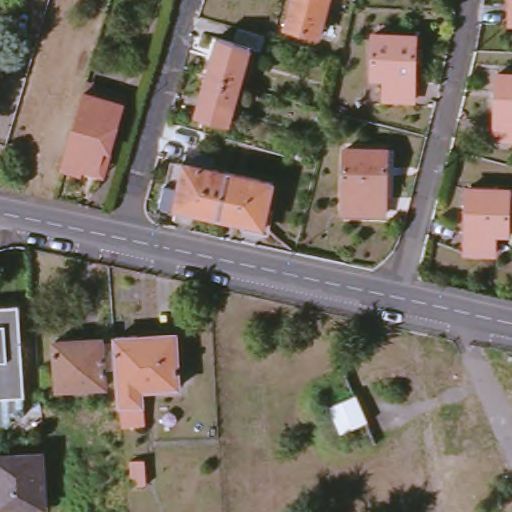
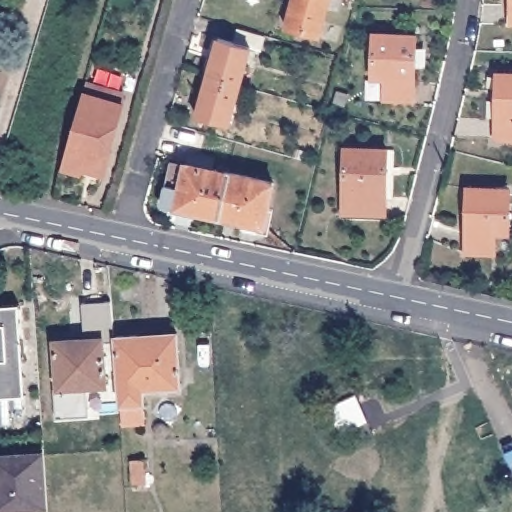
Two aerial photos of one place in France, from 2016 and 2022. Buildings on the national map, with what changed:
unchanged [(287,0),(339,0),(338,6),(326,4),(320,32),(281,23),(287,0)]
unchanged [(507,21),(507,0),(512,0),(512,21),(507,21)]
unchanged [(414,35),(412,101),(383,99),(384,78),(371,78),(373,32),(414,35)]
unchanged [(238,91),(204,81),(214,43),(229,47),(234,34),(259,41),(254,55),(248,53),(238,91)]
unchanged [(512,72),(512,138),(497,137),(500,71),(512,72)]
unchanged [(193,120),(204,81),(238,91),(227,130),(193,120)]
unchanged [(63,171),(65,164),(84,96),(88,84),(129,96),(126,108),(113,152),(106,177),(101,175),(86,171),(84,177),(63,171)]
unchanged [(391,149),(389,214),(346,214),(348,148),(391,149)]
unchanged [(188,163),(189,155),(203,159),(201,166),(231,173),(229,182),(221,218),(176,208),(188,163)]
unchanged [(278,183),(266,228),(221,218),(229,182),(231,173),(278,183)]
unchanged [(507,189),(506,234),(491,233),(491,253),(462,252),(465,187),(507,189)]
unchanged [(23,408),(25,409),(26,413),(23,415),(18,414),(12,415),(13,421),(9,425),(5,421),(0,422),(0,305),(20,304),(25,395),(26,405),(23,408)]
unchanged [(181,386),(143,388),(146,423),(123,425),(116,336),(138,335),(138,337),(178,335),(181,386)]
unchanged [(114,342),(116,368),(106,369),(107,385),(59,388),(55,340),(64,340),(64,344),(76,343),(76,339),(103,337),(104,342),(114,342)]
unchanged [(339,435),(326,406),(354,394),(367,422),(339,435)]
unchanged [(0,487),(5,486),(4,477),(0,477),(0,455),(43,452),(46,506),(0,509),(0,487)]
unchanged [(146,459),(147,484),(132,485),(131,460),(146,459)]

